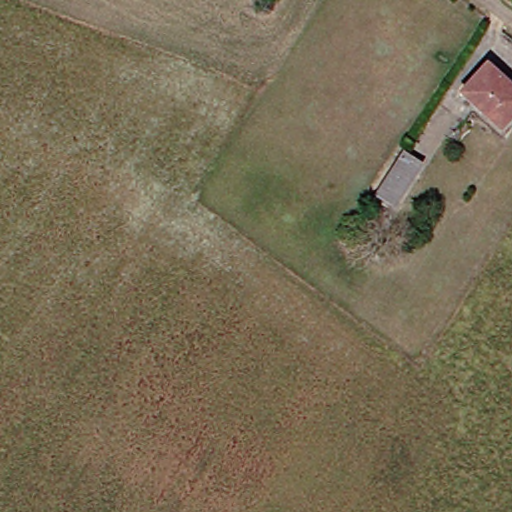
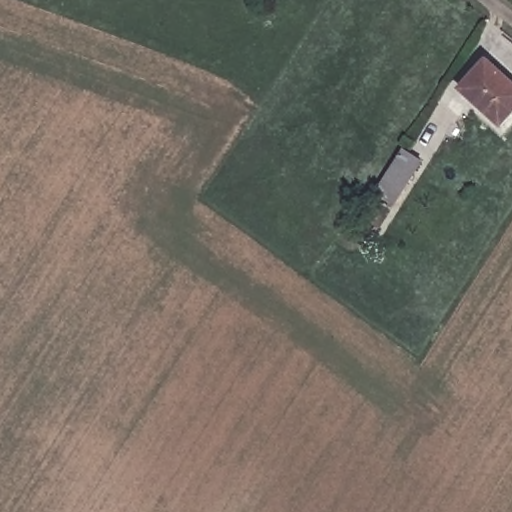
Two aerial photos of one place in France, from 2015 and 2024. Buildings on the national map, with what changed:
unchanged [(512,119),(505,127),(465,91),(490,63),(512,82),(512,119)]
unchanged [(426,163),(397,207),(380,196),(410,152),(426,163)]

